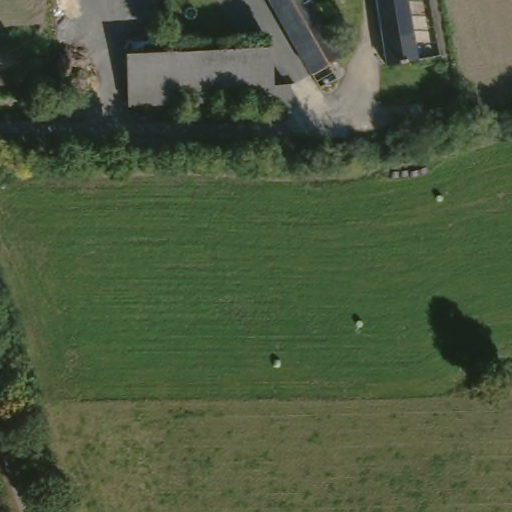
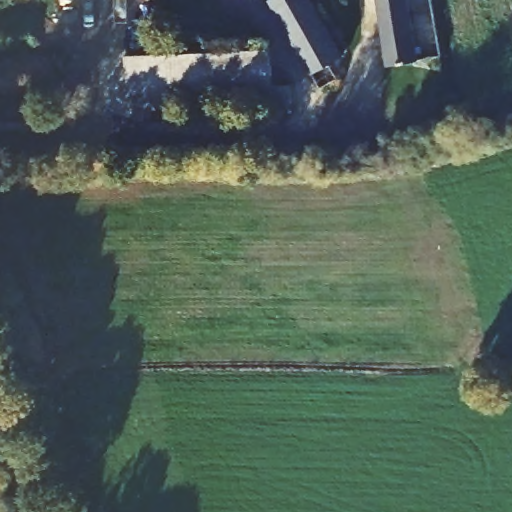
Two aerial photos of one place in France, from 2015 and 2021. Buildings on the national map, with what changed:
unchanged [(312,0),(346,57),(331,65),(341,81),(326,91),(272,1),(274,0),(312,0)]
unchanged [(376,0),(407,0),(416,59),(387,65),(376,0)]
unchanged [(416,59),(407,0),(430,0),(438,55),(416,59)]
unchanged [(270,54),(272,91),(289,91),(289,113),(269,114),(269,103),(163,108),(162,60),(270,54)]
unchanged [(128,110),(126,61),(162,60),(163,108),(128,110)]

